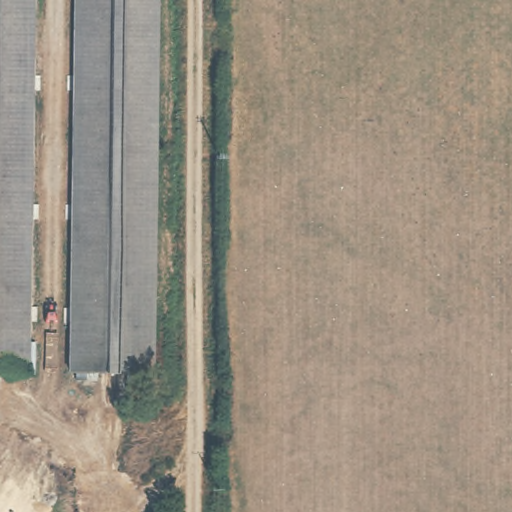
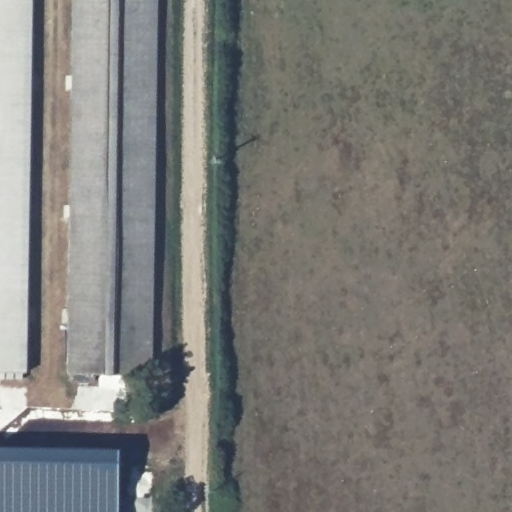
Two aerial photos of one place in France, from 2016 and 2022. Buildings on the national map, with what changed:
unchanged [(22,373),(0,373),(0,0),(24,0),(22,373)]
unchanged [(150,374),(73,372),(75,0),(154,0),(150,374)]
new [(0,512),(0,446),(121,448),(119,512),(0,512)]

